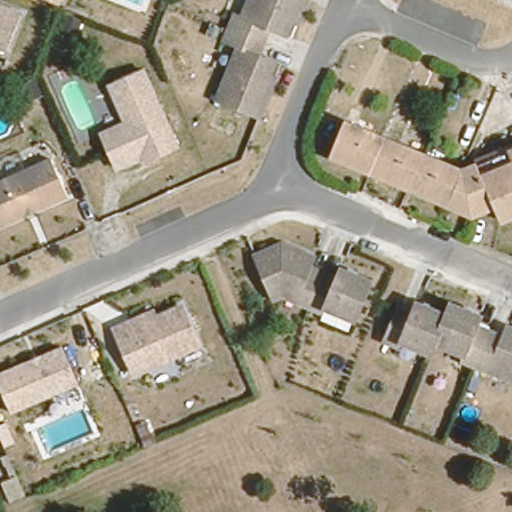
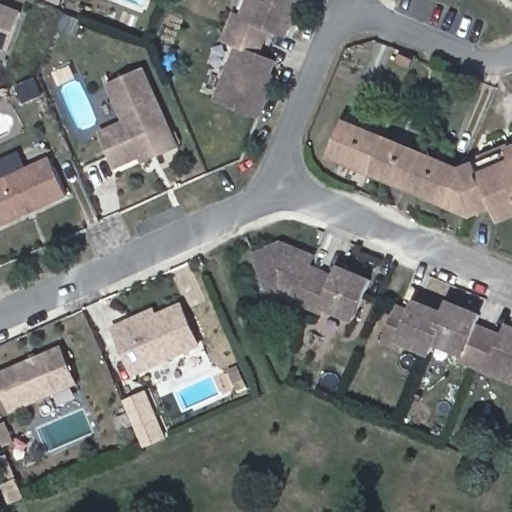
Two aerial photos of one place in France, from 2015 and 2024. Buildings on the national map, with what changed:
unchanged [(217,34),(228,6),(239,11),(243,0),(311,0),(305,15),(299,13),(291,32),(273,25),(262,52),(280,59),(278,64),(272,79),(278,81),(265,115),(258,113),(208,92),(228,38),(217,34)]
unchanged [(0,1),(19,8),(5,46),(0,44),(0,1)]
unchanged [(140,154),(114,165),(99,130),(124,119),(107,81),(141,66),(176,145),(160,151),(142,159),(140,154)]
unchanged [(335,153),(348,119),(391,135),(383,151),(376,169),(335,153)]
unchanged [(417,185),(376,169),(383,151),(391,135),(432,150),(417,185)]
unchanged [(457,201),(417,185),(432,150),(472,165),(486,160),(512,148),(512,206),(500,212),(494,197),(472,207),(457,201)]
unchanged [(29,206),(25,208),(23,213),(0,223),(0,178),(49,157),(65,194),(34,208),(29,206)]
unchanged [(333,307),(331,312),(290,296),(282,299),(264,255),(292,244),(302,248),(323,256),(319,267),(346,278),(351,267),(375,277),(358,317),(333,307)]
unchanged [(511,322),(512,323),(512,376),(465,357),(467,352),(437,340),(433,350),(403,338),(401,344),(387,338),(402,304),(416,310),(421,299),(450,310),(454,299),(484,311),(480,322),(506,333),(511,322)]
unchanged [(134,372),(115,326),(131,319),(154,310),(157,316),(182,305),(199,344),(134,372)]
unchanged [(10,413),(0,390),(0,373),(62,347),(77,384),(10,413)]
new [(144,393),(163,438),(144,447),(125,401),(144,393)]

